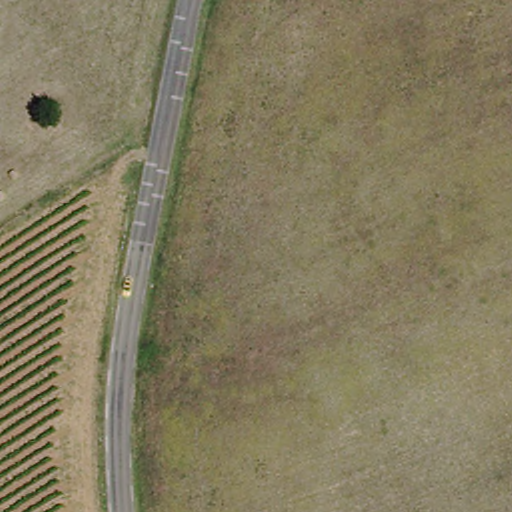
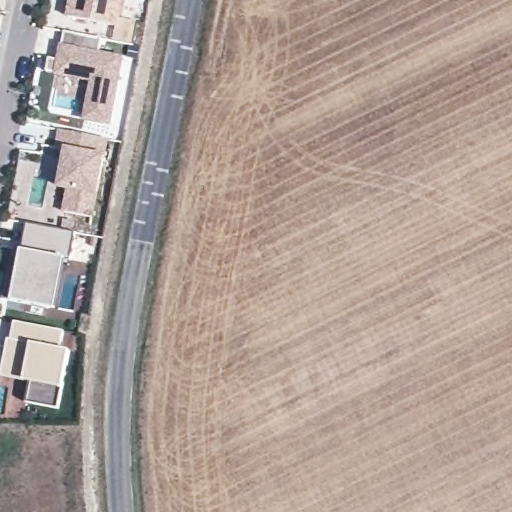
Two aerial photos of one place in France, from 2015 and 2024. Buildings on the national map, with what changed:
new [(65,15),(68,0),(124,0),(121,17),(136,21),(132,43),(113,39),(116,26),(65,15)]
new [(66,32),(102,40),(100,52),(125,56),(111,127),(84,122),(91,83),(55,77),(55,73),(47,72),(50,59),(58,60),(60,45),(63,46),(66,32)]
new [(62,132),(108,140),(105,157),(98,192),(93,217),(65,211),(70,187),(61,186),(68,150),(58,149),(62,132)]
new [(3,300),(11,257),(20,259),(23,250),(29,224),(76,233),(72,261),(66,259),(57,309),(14,301),(3,300)]
new [(52,353),(62,355),(52,404),(23,398),(26,378),(12,375),(14,362),(0,359),(0,356),(4,337),(7,337),(10,320),(56,329),(52,353)]

